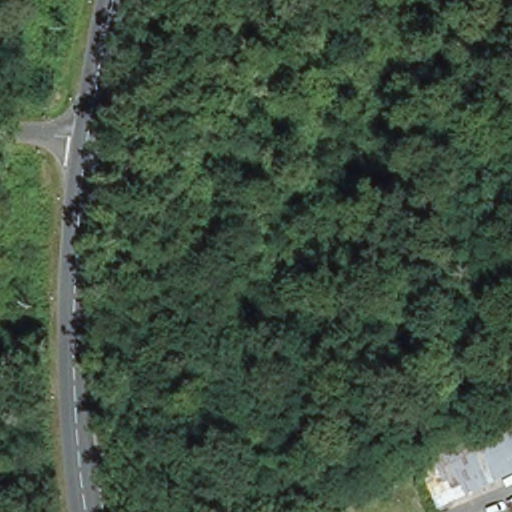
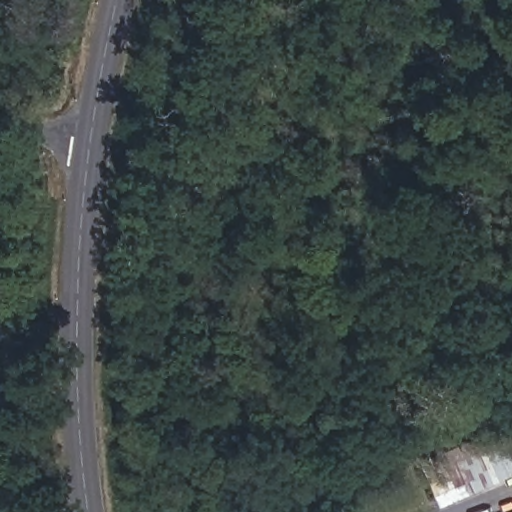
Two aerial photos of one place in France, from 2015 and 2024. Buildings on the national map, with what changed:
unchanged [(421,463),(512,421),(512,472),(436,505),(421,463)]

